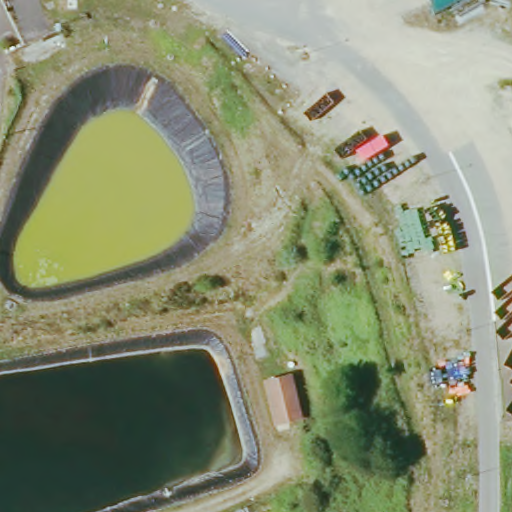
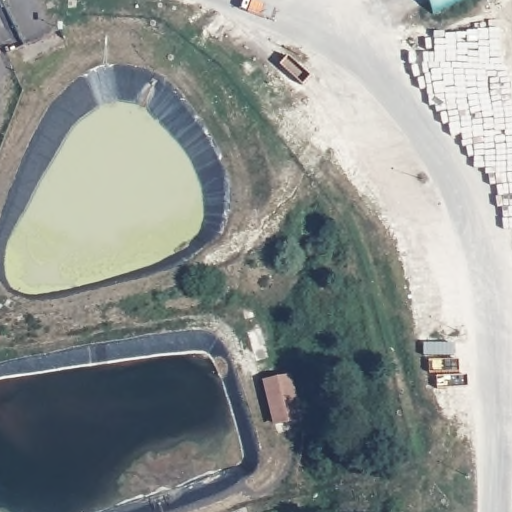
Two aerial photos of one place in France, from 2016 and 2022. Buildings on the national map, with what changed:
unchanged [(434,11),(428,0),(455,0),(434,11)]
unchanged [(296,373),(308,421),(280,428),(267,380),(296,373)]

